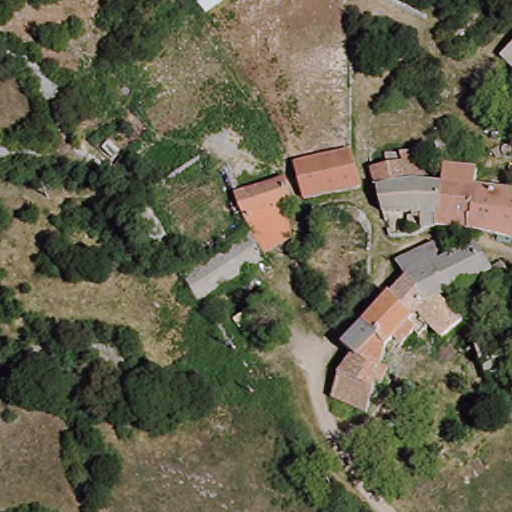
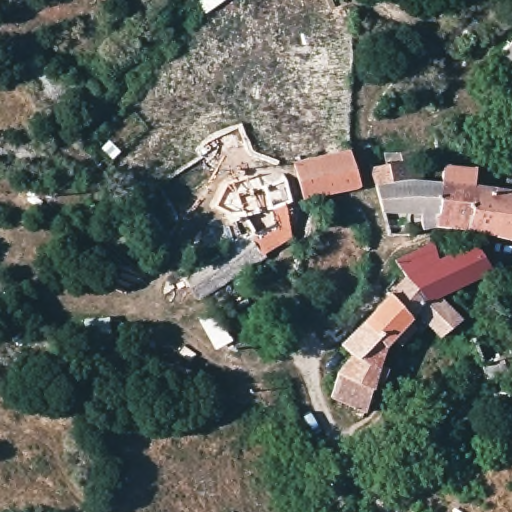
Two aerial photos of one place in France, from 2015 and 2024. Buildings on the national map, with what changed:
unchanged [(501,50),(512,39),(512,62),(501,50)]
unchanged [(483,232),(439,224),(413,235),(405,210),(381,215),(376,199),(373,191),(368,172),(386,169),(384,159),(401,156),(418,153),(427,186),(448,188),(454,164),(481,169),(476,191),(512,196),(512,238),(483,232)]
unchanged [(356,188),(304,201),(296,167),(349,155),(356,188)]
unchanged [(252,232),(242,214),(235,195),(283,179),(291,204),(285,206),(294,237),(266,254),(270,261),(208,295),(198,300),(186,275),(252,232)]
unchanged [(486,268),(447,281),(429,243),(456,236),(459,241),(470,240),(471,244),(486,268)]
unchanged [(447,281),(432,293),(426,298),(402,273),(392,255),(426,239),(429,243),(447,281)]
unchanged [(493,279),(487,270),(500,263),(508,276),(495,284),(493,279)]
unchanged [(334,398),(341,375),(351,351),(344,344),(402,273),(426,298),(432,293),(459,317),(440,332),(428,324),(416,334),(403,339),(396,348),(390,343),(381,385),(374,383),(373,388),(368,410),(334,398)]
unchanged [(499,388),(493,373),(512,364),(512,382),(499,388)]

